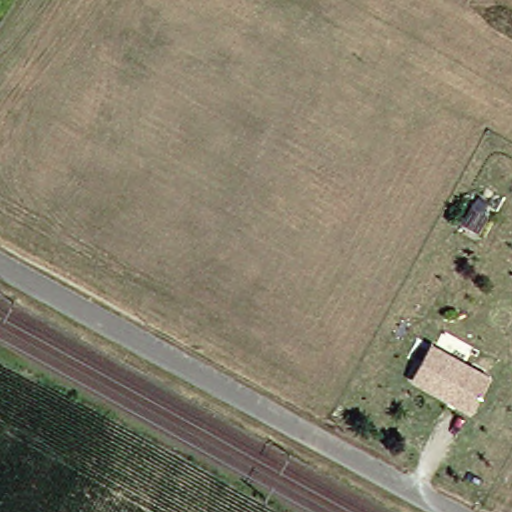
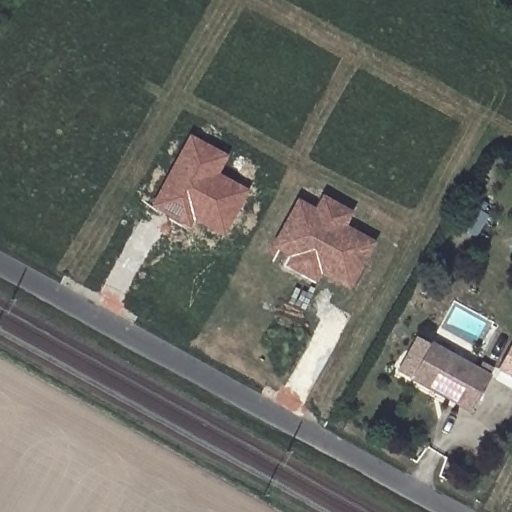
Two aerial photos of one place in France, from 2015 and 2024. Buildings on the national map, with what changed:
new [(218,175),(248,191),(222,237),(195,222),(190,230),(149,208),(187,135),(226,155),(218,175)]
new [(346,227),(375,243),(350,291),(321,275),(315,285),(285,268),(289,257),(272,247),(296,199),(314,210),(321,195),(352,212),(346,227)]
unchanged [(434,340),(494,374),(475,408),(415,375),(434,340)]
new [(512,341),(512,379),(496,371),(512,341)]

